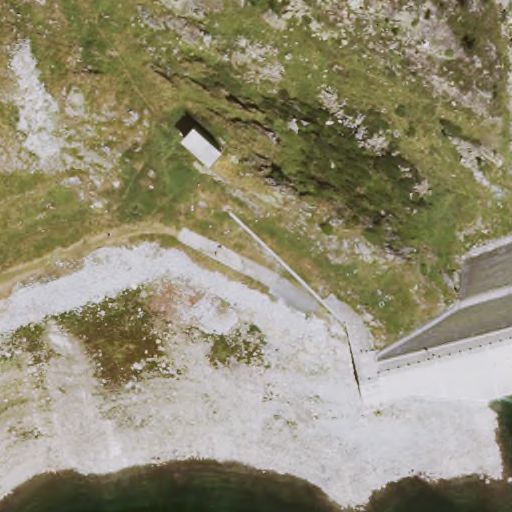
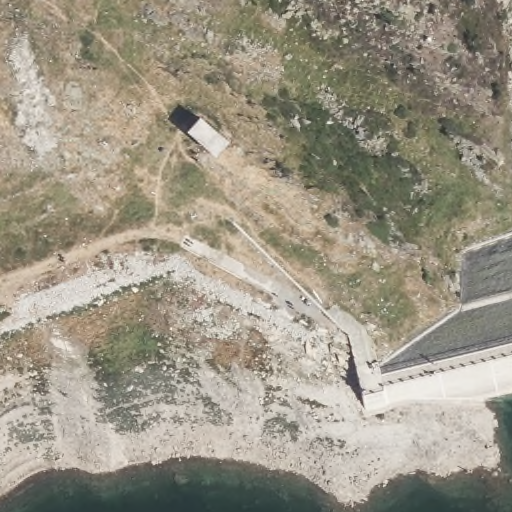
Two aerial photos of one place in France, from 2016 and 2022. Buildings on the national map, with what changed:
unchanged [(212,118),(230,134),(215,151),(186,127),(201,110),(212,118)]

